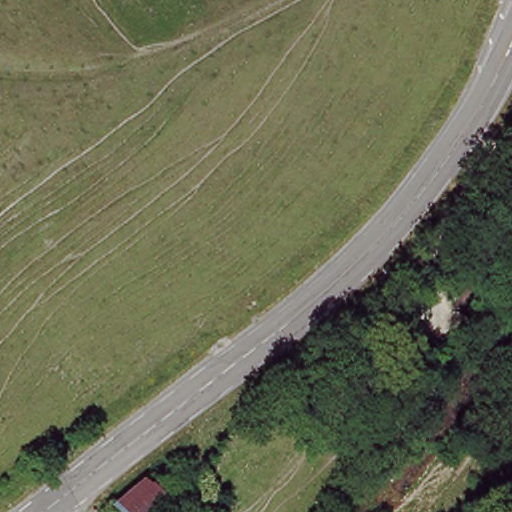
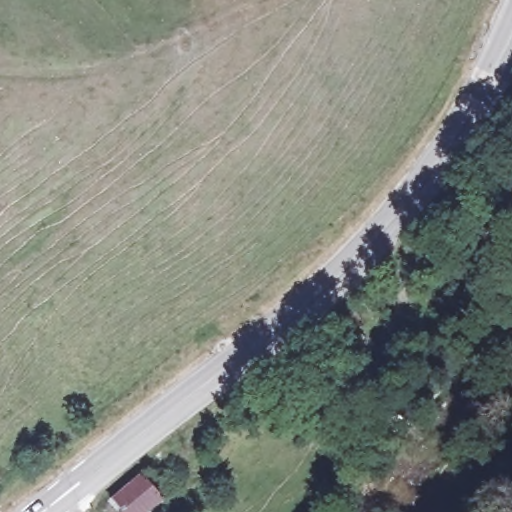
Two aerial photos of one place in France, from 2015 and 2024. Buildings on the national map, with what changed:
unchanged [(146,478),(163,499),(148,512),(116,512),(112,507),(146,478)]

